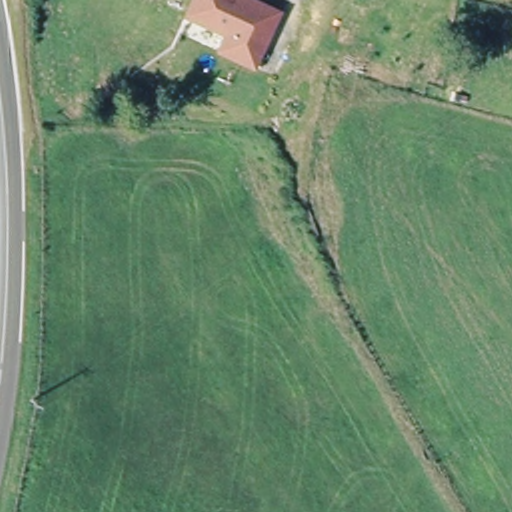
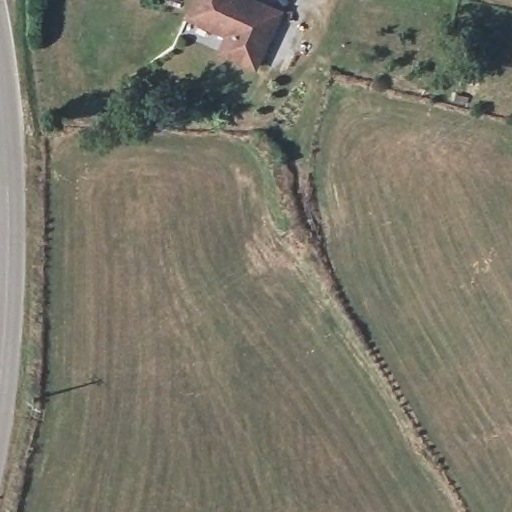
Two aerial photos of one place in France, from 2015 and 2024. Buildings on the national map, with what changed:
unchanged [(252,71),(216,54),(225,36),(185,15),(193,0),(257,0),(281,11),(252,71)]

